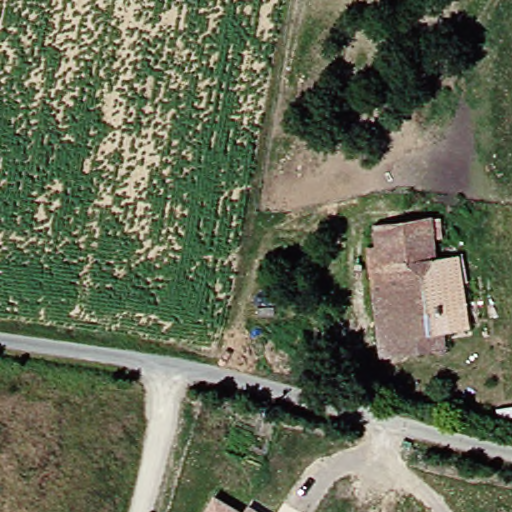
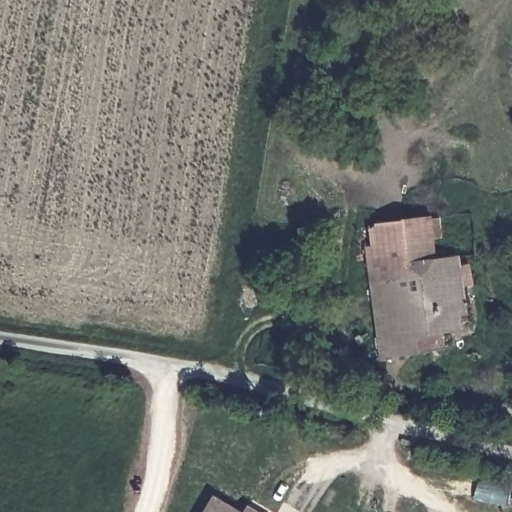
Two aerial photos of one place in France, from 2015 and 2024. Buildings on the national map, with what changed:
unchanged [(433,327),(367,332),(358,242),(362,242),(365,222),(420,217),(426,260),(433,327)]
unchanged [(448,260),(456,325),(433,327),(426,260),(448,260)]
unchanged [(370,356),(367,332),(433,327),(435,350),(370,356)]
unchanged [(198,512),(210,493),(241,512),(198,512)]

